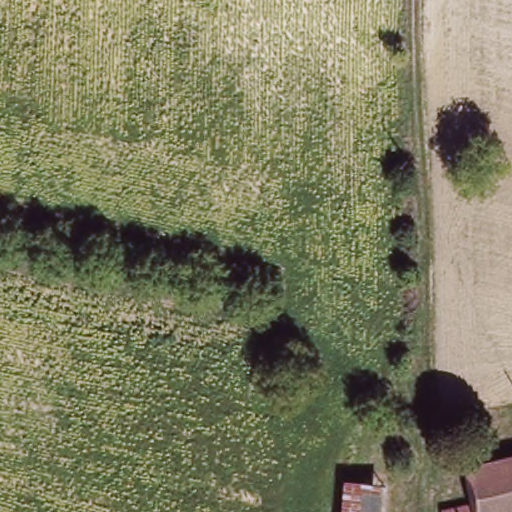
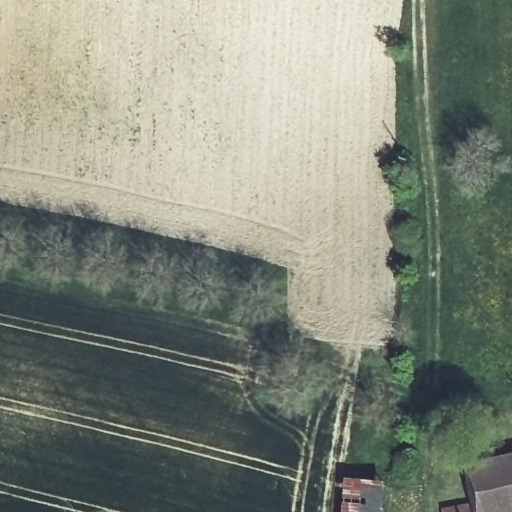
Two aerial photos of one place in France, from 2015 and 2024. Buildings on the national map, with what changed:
unchanged [(474,503),(467,471),(512,460),(512,512),(443,512),(442,510),(474,503)]
unchanged [(385,489),(381,512),(345,512),(350,483),(385,489)]

